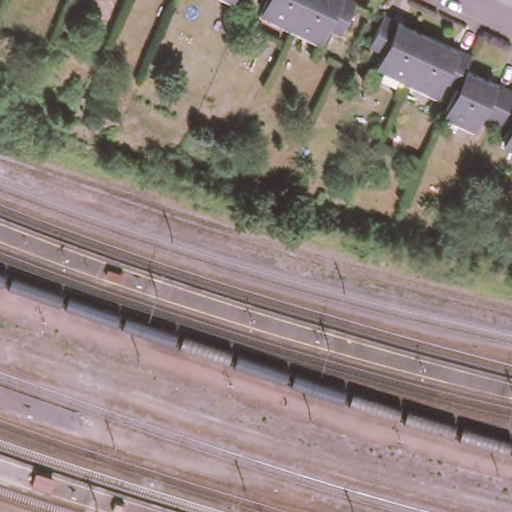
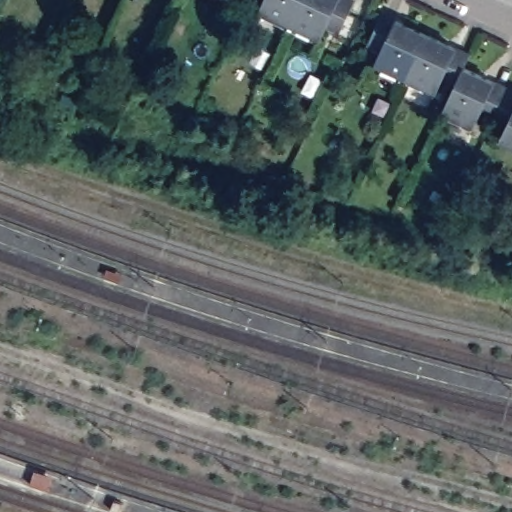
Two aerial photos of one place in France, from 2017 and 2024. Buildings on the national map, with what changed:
unchanged [(260,0),(278,0),(273,11),(258,4),(260,0)]
unchanged [(340,24),(327,18),(320,32),(273,11),(278,0),(352,0),(340,24)]
unchanged [(376,63),(382,49),(368,42),(383,11),(432,34),(412,77),(376,63)]
unchanged [(457,82),(445,77),(438,90),(412,77),(432,34),(471,52),(465,67),(495,81),(481,110),(477,119),(473,125),(444,110),(446,105),(457,82)]
unchanged [(512,142),(502,137),(508,123),(481,110),(495,81),(512,89),(512,142)]

